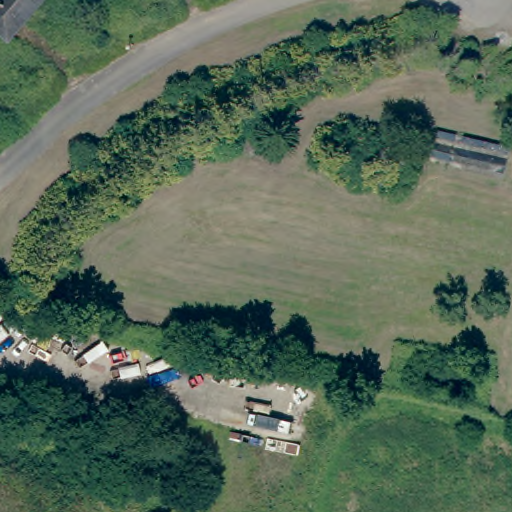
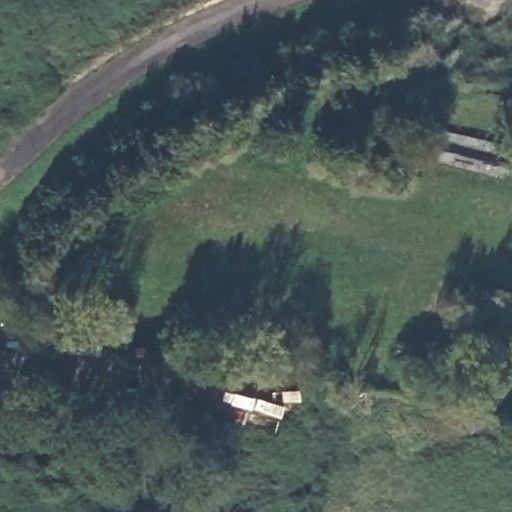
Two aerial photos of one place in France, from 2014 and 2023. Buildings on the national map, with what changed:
demolished [(1,41),(0,40),(0,0),(38,0),(1,41)]
unchanged [(512,158),(507,178),(435,163),(441,133),(512,148),(512,158)]

